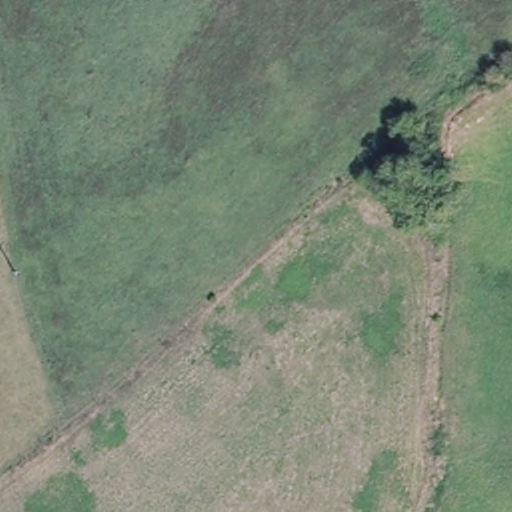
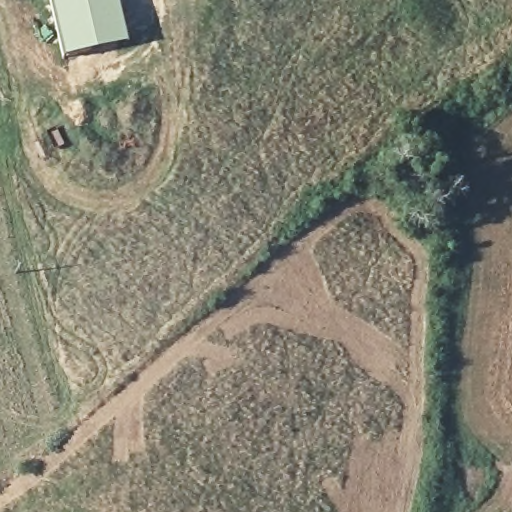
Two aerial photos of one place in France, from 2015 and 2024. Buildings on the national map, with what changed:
new [(57,0),(124,0),(134,41),(70,56),(57,0)]

